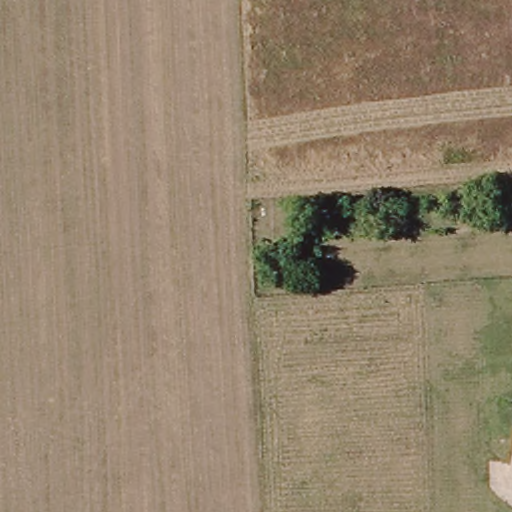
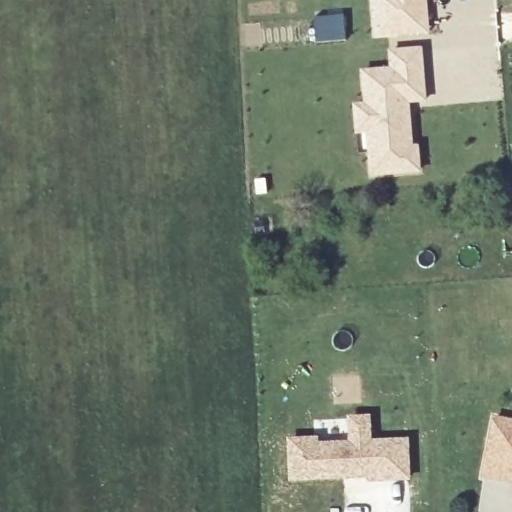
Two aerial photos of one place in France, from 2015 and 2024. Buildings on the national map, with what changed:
new [(430,36),(371,38),(368,0),(428,0),(430,36)]
new [(345,13),(346,40),(315,43),(311,16),(345,13)]
new [(425,99),(408,101),(412,148),(417,147),(418,169),(372,173),(370,153),(376,152),(370,102),(365,102),(363,72),(422,66),(425,99)]
new [(491,416),(512,419),(512,484),(478,479),(491,416)]
new [(370,445),(409,442),(411,477),(370,480),(370,474),(291,479),(289,439),(314,439),(313,421),(368,418),(370,445)]

